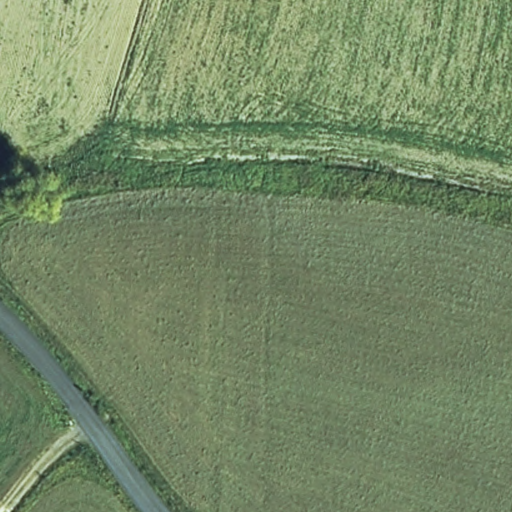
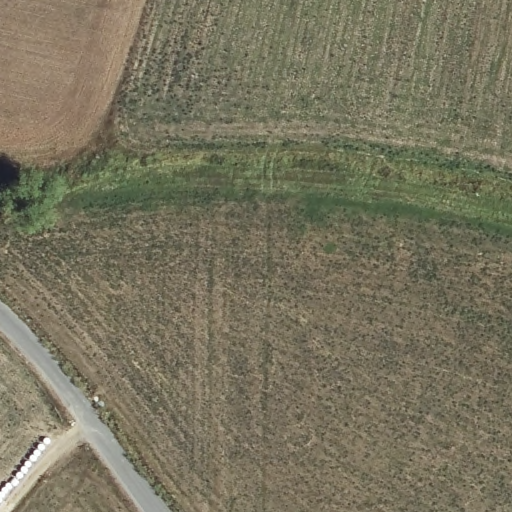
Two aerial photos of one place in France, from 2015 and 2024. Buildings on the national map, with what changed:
[]

